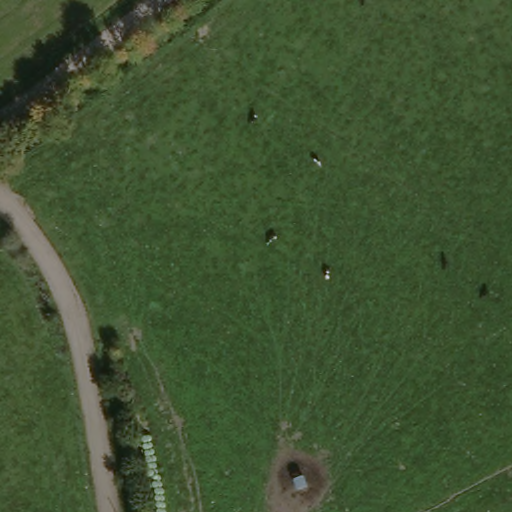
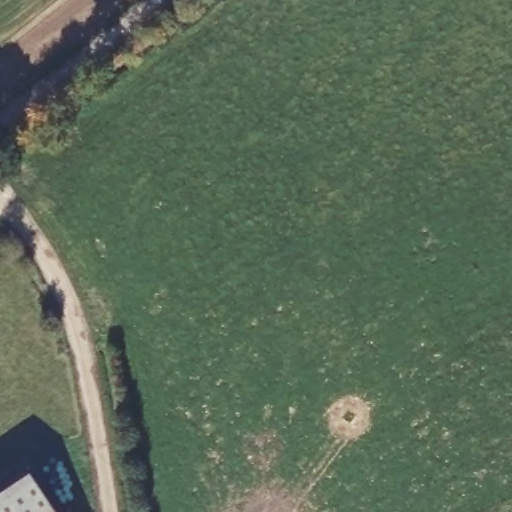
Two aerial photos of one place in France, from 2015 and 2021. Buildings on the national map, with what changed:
new [(58,512),(0,512),(0,484),(27,466),(58,512)]

